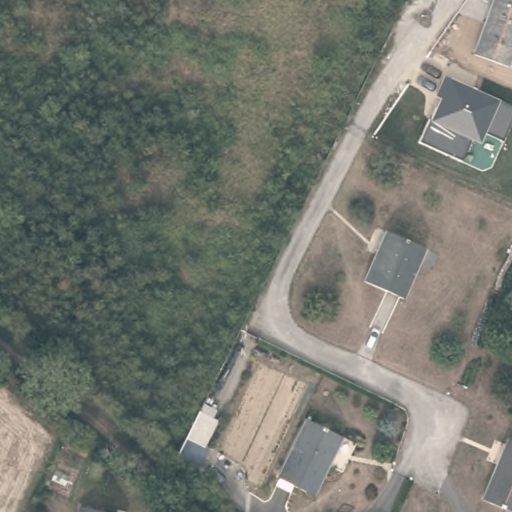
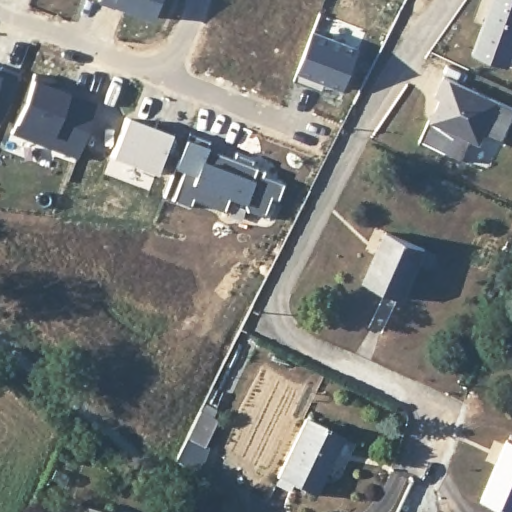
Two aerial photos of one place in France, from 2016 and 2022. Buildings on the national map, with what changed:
new [(162,0),(155,18),(118,4),(116,7),(100,1),(101,0),(162,0)]
unchanged [(470,52),(494,0),(512,0),(512,40),(501,66),(470,52)]
new [(310,86),(294,80),(313,31),(359,50),(344,89),(326,82),(325,86),(323,91),(310,86)]
new [(1,67),(18,74),(0,122),(0,71),(1,67)]
new [(34,74),(57,83),(55,89),(97,106),(77,159),(12,134),(34,74)]
unchanged [(485,131),(480,141),(472,138),(462,160),(421,141),(432,119),(441,100),(436,97),(446,77),(498,101),(512,107),(512,118),(503,140),(485,131)]
new [(126,119),(154,129),(157,121),(188,133),(178,159),(164,153),(156,174),(111,157),(126,119)]
new [(183,172),(175,169),(178,159),(188,133),(210,141),(207,149),(233,160),(236,154),(253,161),(251,166),(265,172),(263,176),(284,184),(278,202),(271,199),(264,218),(247,212),(243,204),(229,199),(224,213),(193,201),(190,208),(172,201),(183,172)]
unchanged [(427,248),(407,301),(365,285),(388,232),(427,248)]
unchanged [(281,480),(302,419),(341,432),(320,493),(281,480)]
unchanged [(203,424),(227,436),(204,487),(185,468),(203,424)]
unchanged [(512,511),(481,498),(504,442),(512,445),(512,511)]
unchanged [(99,512),(75,512),(77,506),(99,512)]

